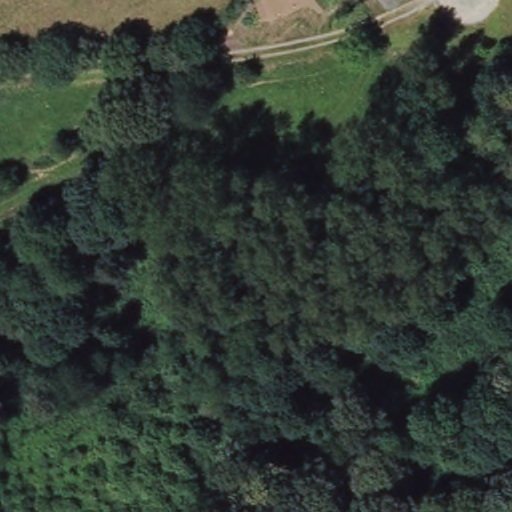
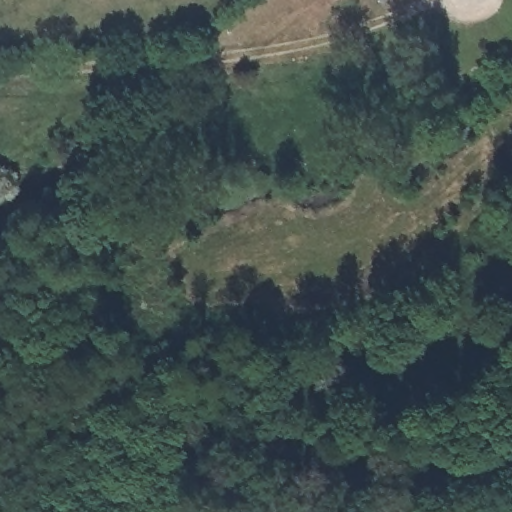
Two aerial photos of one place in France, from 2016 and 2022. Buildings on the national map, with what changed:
unchanged [(375,16),(366,0),(395,0),(397,3),(375,16)]

